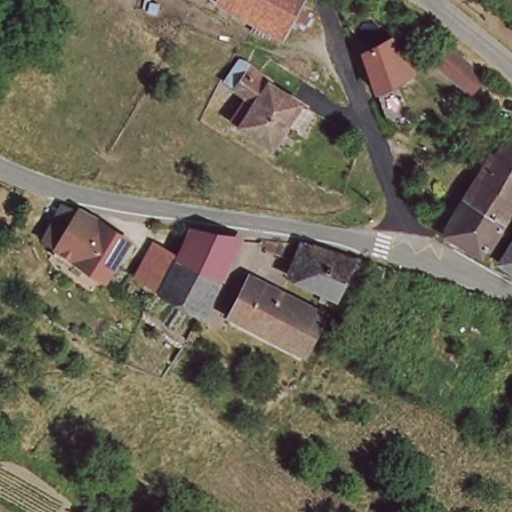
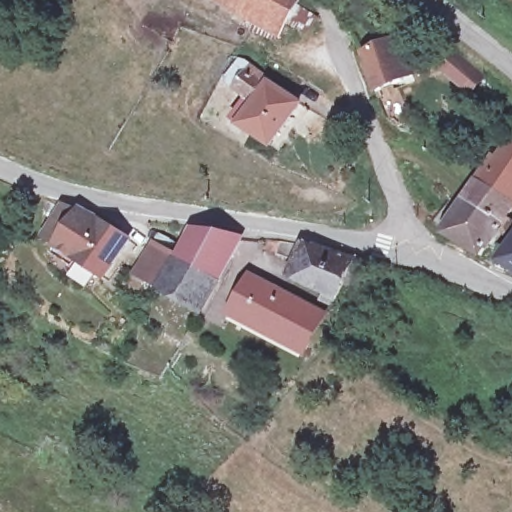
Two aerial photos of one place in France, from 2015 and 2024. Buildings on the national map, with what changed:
unchanged [(280,11),(269,31),(221,0),(301,0),(308,14),(302,25),(280,11)]
unchanged [(397,42),(410,75),(375,91),(361,59),(397,42)]
unchanged [(468,91),(447,73),(435,62),(446,49),(459,59),(480,77),(468,91)]
unchanged [(302,110),(274,150),(235,125),(252,100),(237,91),(248,75),(302,110)]
unchanged [(512,201),(479,254),(445,232),(512,140),(512,201)]
unchanged [(374,206),(371,219),(360,216),(363,204),(374,206)]
unchanged [(115,280),(60,247),(77,212),(93,216),(137,245),(115,280)]
unchanged [(161,252),(178,258),(188,227),(238,237),(206,321),(141,282),(161,252)]
unchanged [(512,237),(512,283),(491,269),(512,237)]
unchanged [(345,277),(336,297),(293,277),(310,242),(351,261),(345,277)]
unchanged [(322,317),(305,350),(235,312),(250,280),(322,317)]

